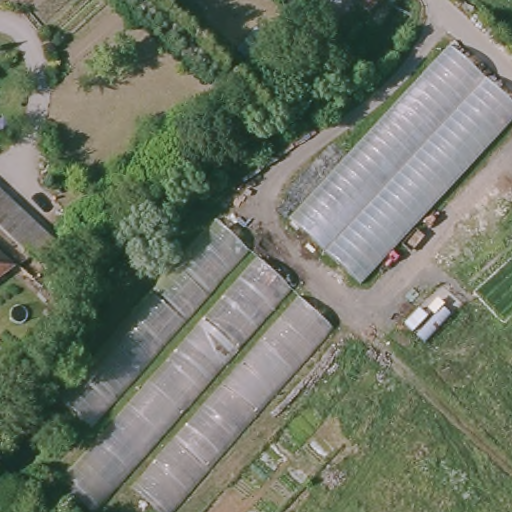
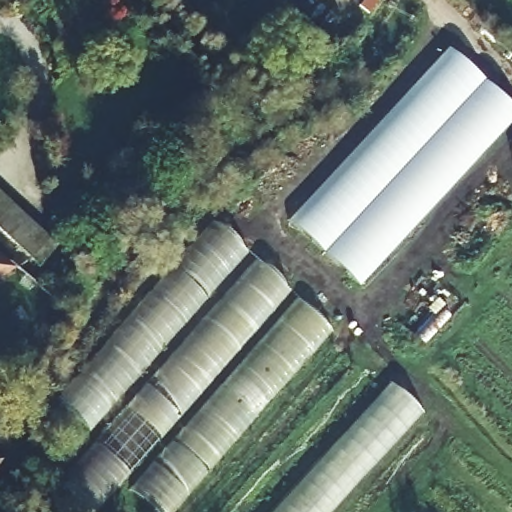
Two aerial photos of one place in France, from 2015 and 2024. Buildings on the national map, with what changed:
unchanged [(445,46),(512,102),(512,118),(361,284),(290,218),(445,46)]
unchanged [(36,262),(0,230),(0,192),(55,242),(36,262)]
unchanged [(327,330),(176,512),(153,512),(122,486),(101,512),(78,512),(50,490),(93,446),(57,403),(211,225),(327,330)]
unchanged [(0,277),(0,259),(10,267),(0,277)]
new [(333,512),(273,512),(391,383),(424,412),(333,512)]

